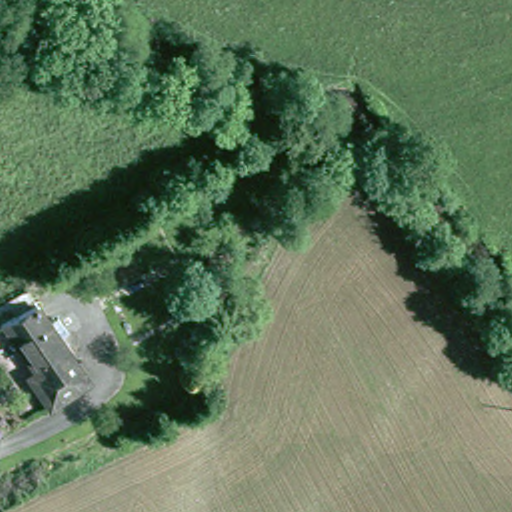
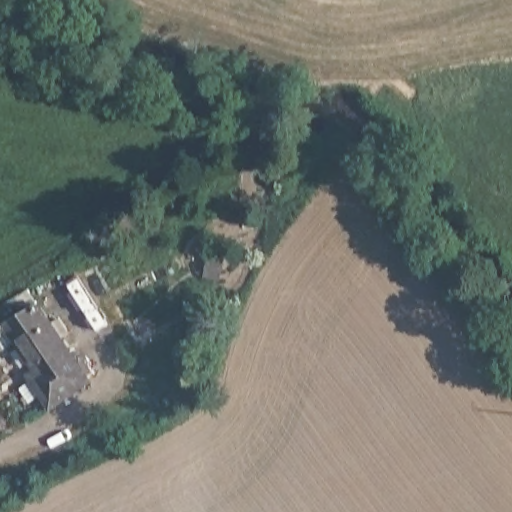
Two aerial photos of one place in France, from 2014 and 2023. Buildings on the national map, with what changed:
unchanged [(86,381),(50,407),(32,380),(42,372),(9,326),(35,308),(86,381)]

